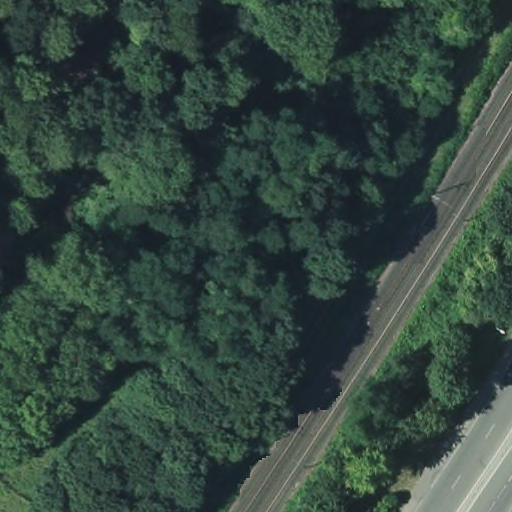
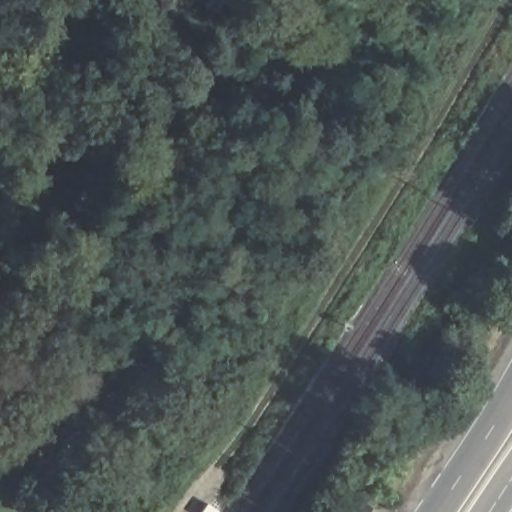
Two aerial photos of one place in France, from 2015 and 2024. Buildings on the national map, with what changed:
unchanged [(337,509),(349,492),(366,503),(360,512),(342,512),(337,509)]

